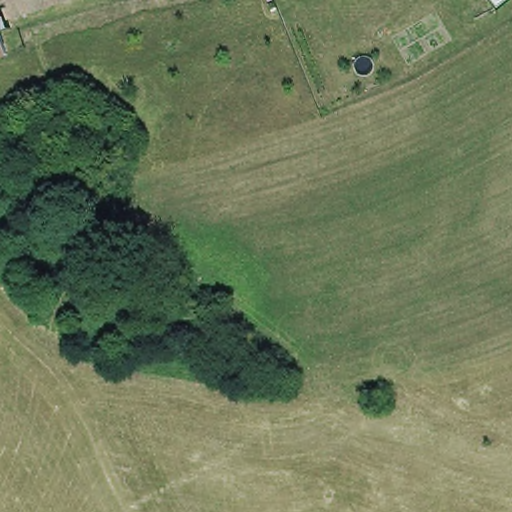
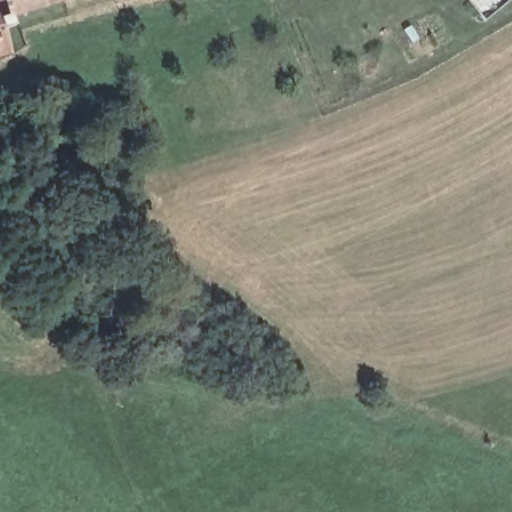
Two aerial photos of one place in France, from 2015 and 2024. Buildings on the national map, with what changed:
unchanged [(0,24),(0,0),(75,0),(0,24)]
unchanged [(6,58),(0,60),(0,39),(6,58)]

